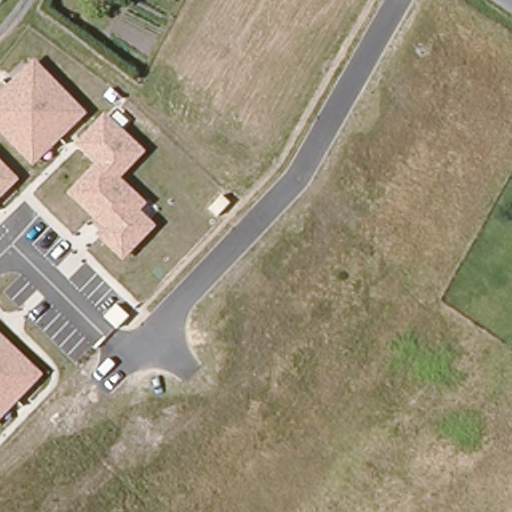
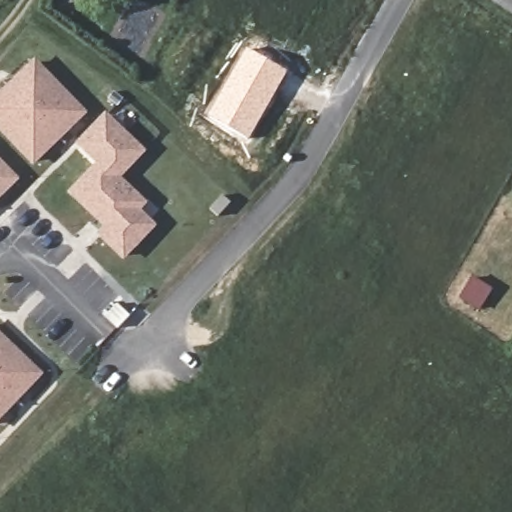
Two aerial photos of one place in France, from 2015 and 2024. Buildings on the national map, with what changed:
new [(287,70),(249,139),(208,116),(247,48),(287,70)]
unchanged [(89,112),(35,165),(0,131),(0,96),(37,60),(89,112)]
unchanged [(76,142),(105,114),(147,152),(123,178),(147,203),(140,210),(158,226),(125,261),(96,236),(104,227),(68,192),(95,163),(76,142)]
unchanged [(0,200),(0,157),(21,179),(0,200)]
unchanged [(0,421),(0,331),(44,375),(0,421)]

